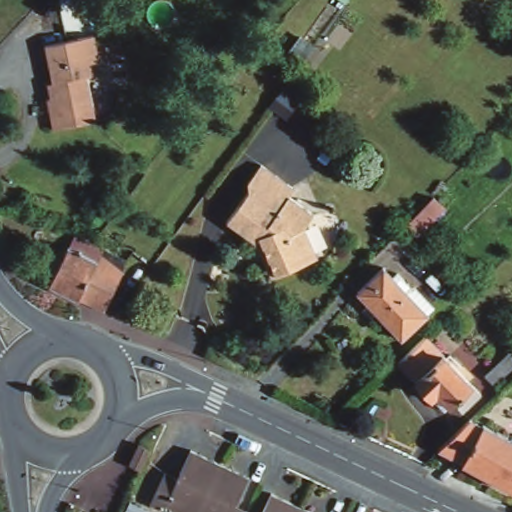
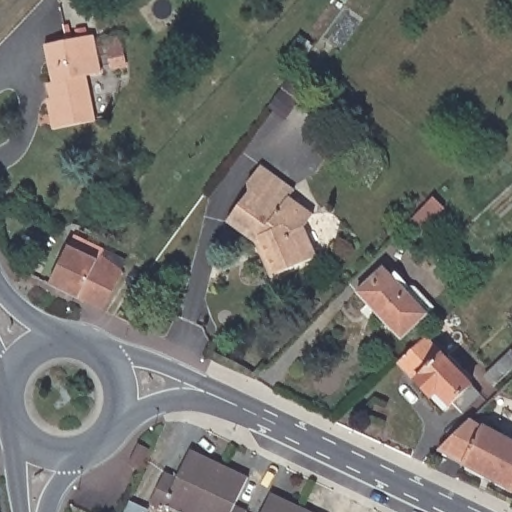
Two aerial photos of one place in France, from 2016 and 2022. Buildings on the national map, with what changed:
unchanged [(93,35),(101,73),(86,76),(95,121),(52,130),(45,97),(54,96),(44,44),(93,35)]
unchanged [(257,241),(227,219),(249,189),(249,179),(262,161),(296,187),(290,195),(315,211),(305,225),(315,251),(312,258),(279,272),(270,275),(257,241)]
unchanged [(443,210),(416,238),(403,226),(431,198),(443,210)]
unchanged [(101,230),(96,236),(92,232),(97,226),(101,230)]
unchanged [(121,296),(113,293),(104,311),(49,284),(68,246),(70,247),(75,235),(105,249),(111,251),(126,266),(123,272),(130,276),(121,296)]
unchanged [(383,268),(428,315),(403,340),(358,292),(383,268)]
unchanged [(428,392),(395,358),(421,332),(476,390),(458,406),(449,398),(446,400),(440,405),(428,392)]
unchanged [(487,375),(492,370),(512,351),(512,368),(495,384),(487,375)]
unchanged [(463,462),(438,450),(453,436),(465,425),(468,421),(480,410),(485,417),(476,426),(480,428),(483,426),(512,442),(512,491),(462,465),(463,462)]
unchanged [(165,502),(163,507),(149,501),(164,470),(177,476),(191,447),(248,475),(235,502),(247,508),(245,512),(186,512),(165,502)]
unchanged [(271,490),(319,512),(261,512),(271,490)]
unchanged [(135,512),(125,512),(126,508),(135,512)]

